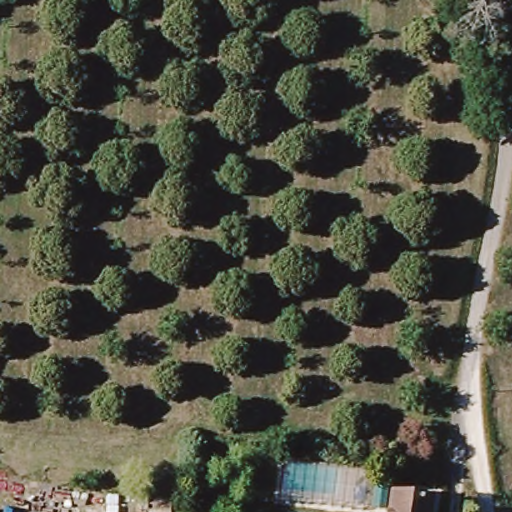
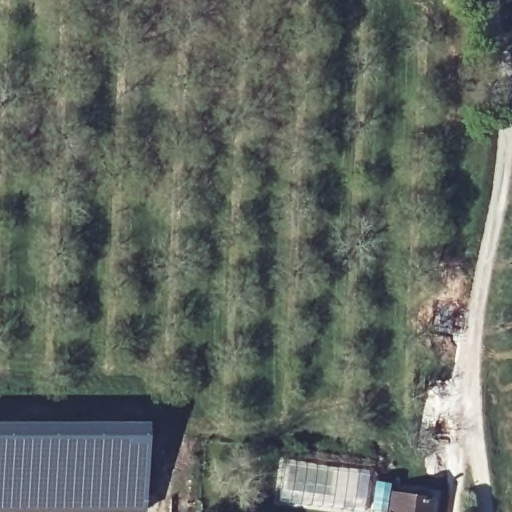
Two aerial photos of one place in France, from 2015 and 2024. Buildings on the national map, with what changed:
new [(147,510),(0,510),(0,421),(145,420),(147,510)]
unchanged [(431,512),(389,512),(390,499),(431,501),(431,512)]

